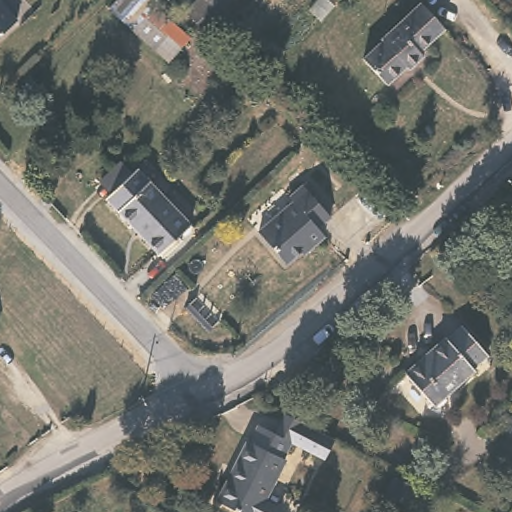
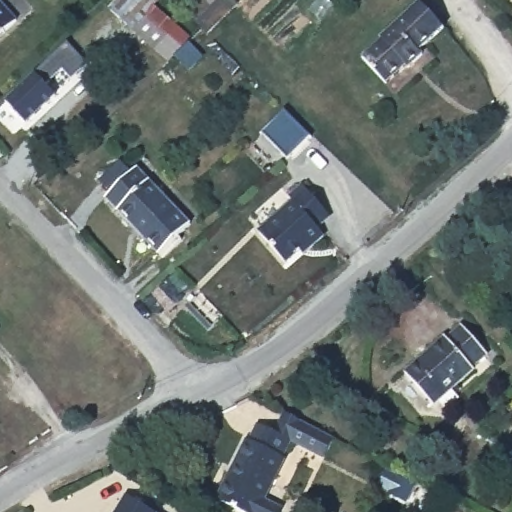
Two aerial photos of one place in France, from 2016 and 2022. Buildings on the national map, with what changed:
unchanged [(179,25),(170,32),(180,42),(164,57),(110,9),(118,0),(160,0),(156,5),(179,25)]
unchanged [(234,0),(239,4),(215,26),(210,21),(205,16),(192,6),(195,1),(196,0),(234,0)]
unchanged [(421,2),(447,28),(423,50),(397,23),(421,2)]
unchanged [(0,34),(0,7),(12,21),(0,34)]
unchanged [(423,50),(390,80),(369,56),(384,42),(385,34),(397,23),(423,50)]
new [(36,73),(66,42),(89,65),(73,81),(64,71),(48,86),(57,95),(26,124),(6,102),(36,73)]
new [(286,109),(311,135),(288,157),(262,131),(286,109)]
unchanged [(192,224),(160,254),(106,198),(139,168),(192,224)]
unchanged [(331,216),(318,227),(325,236),(312,247),(308,244),(286,263),(258,231),(294,200),(290,196),(303,184),(331,216)]
unchanged [(492,347),(477,361),(480,364),(439,397),(409,365),(449,329),(451,332),(467,317),(492,347)]
unchanged [(335,440),(323,461),(290,443),(281,457),(285,460),(265,498),(275,506),(277,512),(238,512),(217,502),(247,441),(250,442),(260,427),(275,433),(285,415),(335,440)]
unchanged [(512,471),(496,461),(503,450),(512,455),(512,471)]
new [(126,495),(156,512),(115,512),(126,495)]

